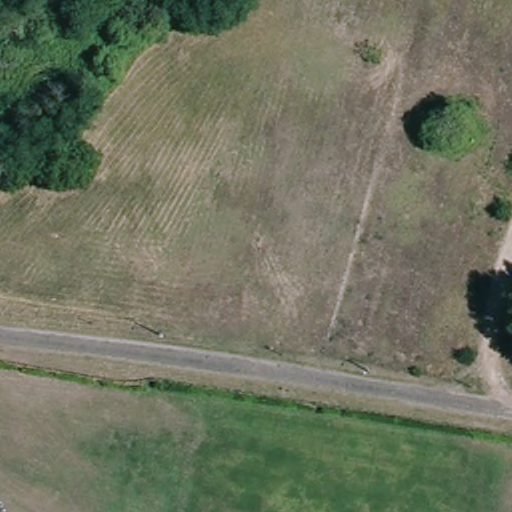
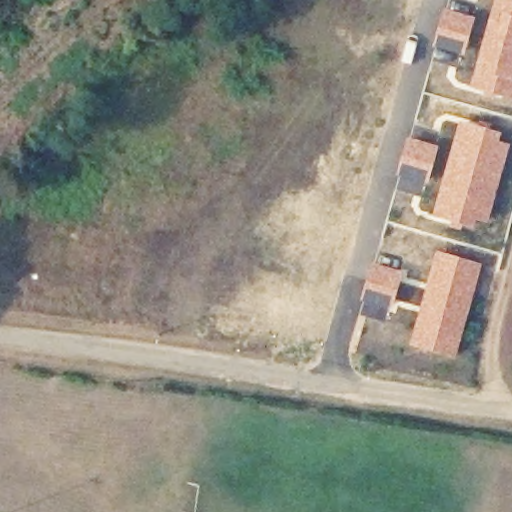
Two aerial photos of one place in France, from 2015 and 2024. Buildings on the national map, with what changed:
new [(493,0),(512,0),(512,101),(468,88),(493,0)]
new [(443,8),(475,16),(462,56),(433,48),(443,8)]
new [(459,119),(502,131),(500,140),(511,142),(488,225),(476,221),(474,230),(430,217),(459,119)]
new [(407,137),(438,145),(429,174),(400,164),(407,137)]
new [(435,249),(483,262),(456,359),(408,345),(435,249)]
new [(372,262),(403,271),(395,297),(386,321),(359,313),(365,287),(372,262)]

